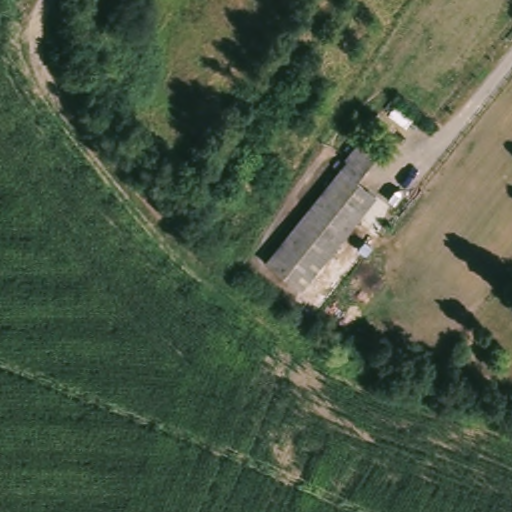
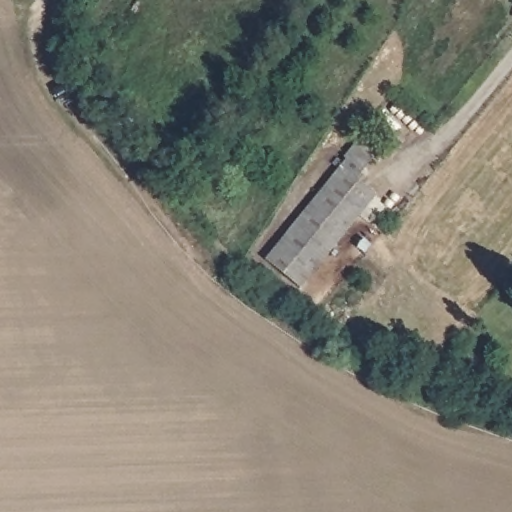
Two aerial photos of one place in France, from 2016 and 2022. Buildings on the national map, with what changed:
unchanged [(375,200),(299,293),(264,265),(347,162),(346,160),(354,150),(371,164),(363,174),(355,184),(375,200)]

